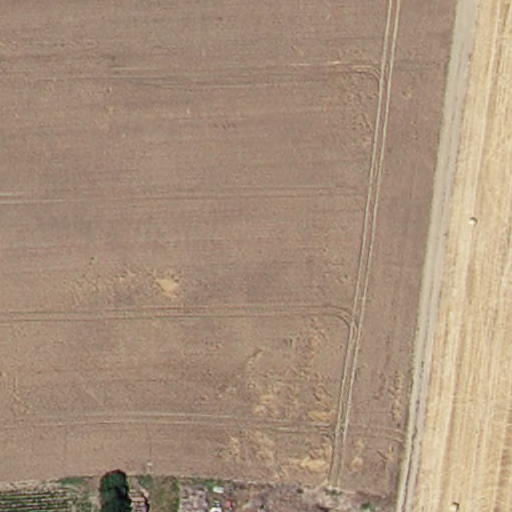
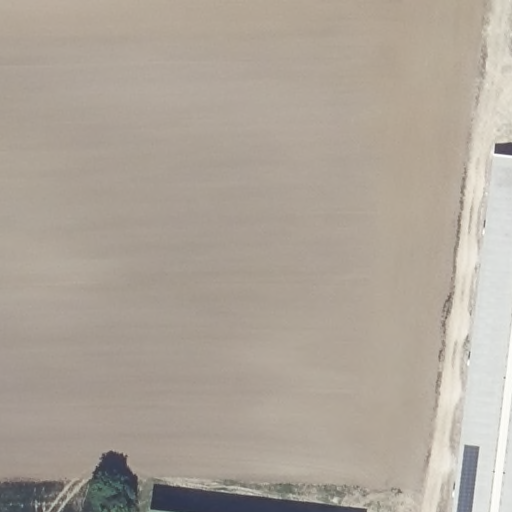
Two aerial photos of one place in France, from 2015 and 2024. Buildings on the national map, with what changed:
new [(512,160),(512,512),(457,512),(492,159),(512,160)]
new [(147,508),(186,512),(147,512),(147,508)]

